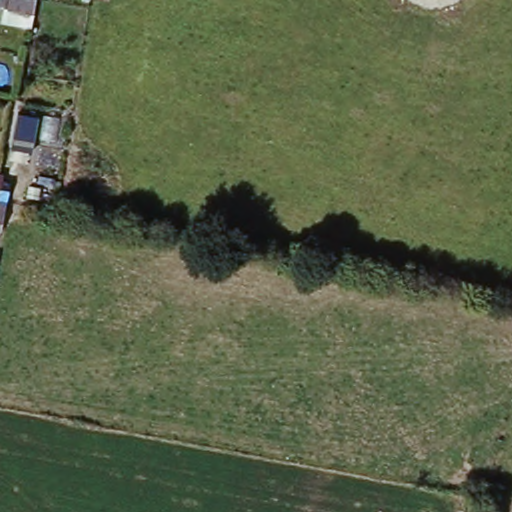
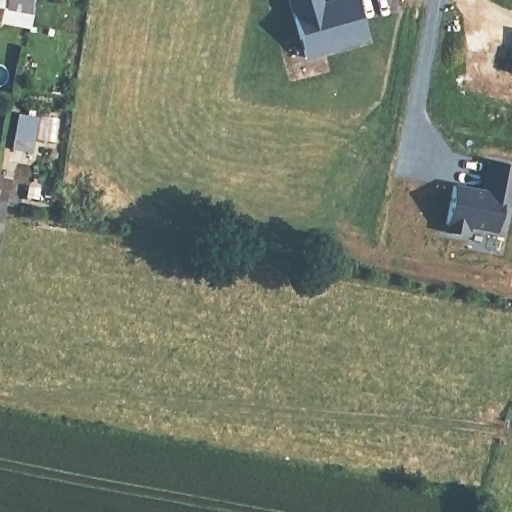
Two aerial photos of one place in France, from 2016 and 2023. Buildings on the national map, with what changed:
unchanged [(39,0),(33,27),(0,20),(0,0),(39,0)]
new [(347,0),(359,0),(371,41),(310,59),(293,0),(325,0),(327,6),(347,0)]
new [(14,145),(18,114),(38,117),(34,147),(14,145)]
new [(56,142),(39,141),(43,116),(61,118),(56,142)]
new [(489,191),(495,162),(512,165),(512,203),(508,202),(502,232),(476,227),(474,237),(451,232),(459,186),(489,191)]
unchanged [(2,175),(0,191),(9,192),(2,229),(0,229),(0,175),(2,175)]

